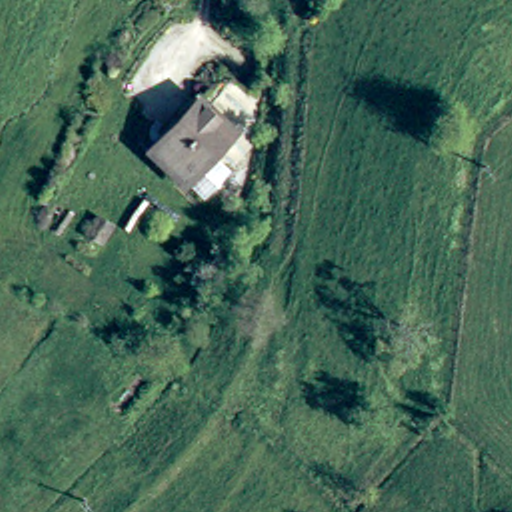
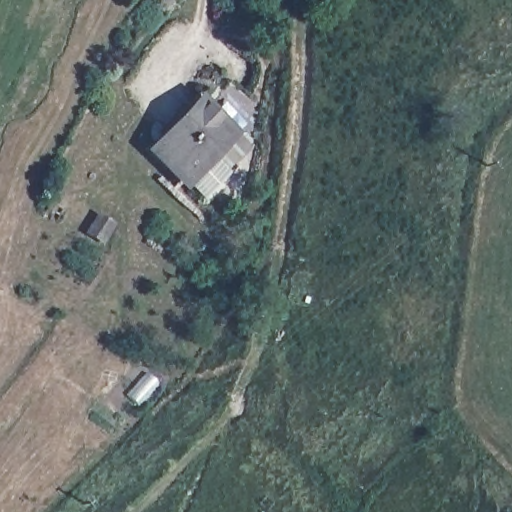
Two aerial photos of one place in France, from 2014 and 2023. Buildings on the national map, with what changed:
unchanged [(158,145),(172,132),(205,100),(240,134),(192,180),(158,145)]

